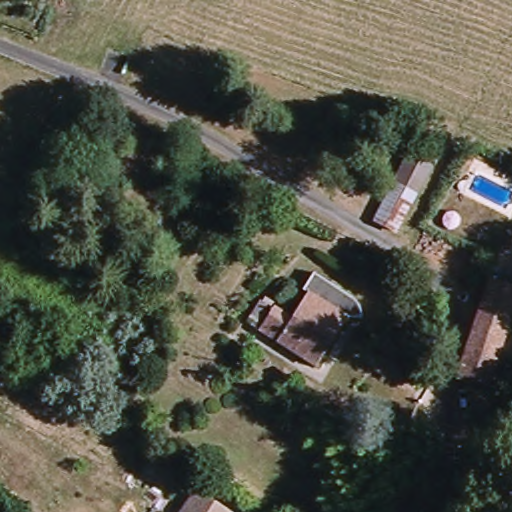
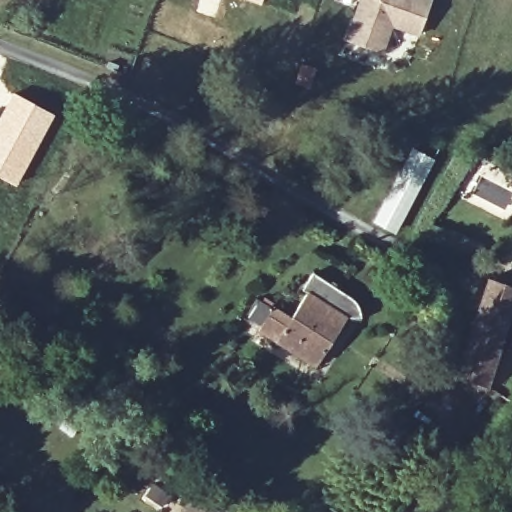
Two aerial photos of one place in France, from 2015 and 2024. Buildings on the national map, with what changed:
new [(249,0),(261,0),(259,4),(249,0)]
new [(432,0),(420,33),(392,23),(382,51),(346,39),(361,0),(432,0)]
new [(12,89),(54,113),(14,186),(0,179),(0,111),(12,89)]
unchanged [(374,220),(399,177),(416,149),(434,160),(419,188),(394,231),(374,220)]
unchanged [(257,332),(260,327),(247,318),(258,303),(270,311),(273,309),(289,319),(307,294),(304,292),(315,276),(361,309),(363,319),(345,321),(313,369),(257,332)]
unchanged [(453,378),(485,279),(512,289),(512,304),(511,304),(482,388),(453,378)]
unchanged [(193,491),(223,512),(179,512),(193,491)]

